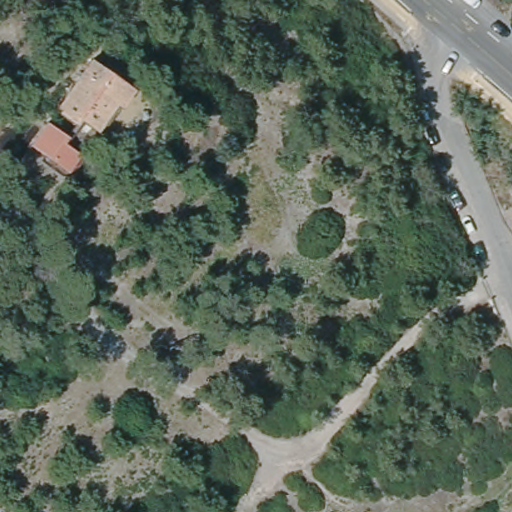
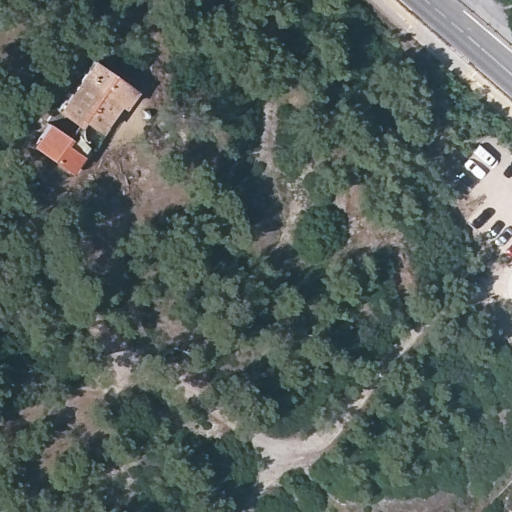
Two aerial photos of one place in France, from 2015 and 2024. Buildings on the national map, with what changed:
unchanged [(119,110),(112,107),(92,132),(79,124),(72,131),(52,117),(89,66),(129,94),(119,110)]
unchanged [(66,136),(72,131),(79,124),(92,132),(81,155),(68,174),(29,142),(46,122),(66,136)]

